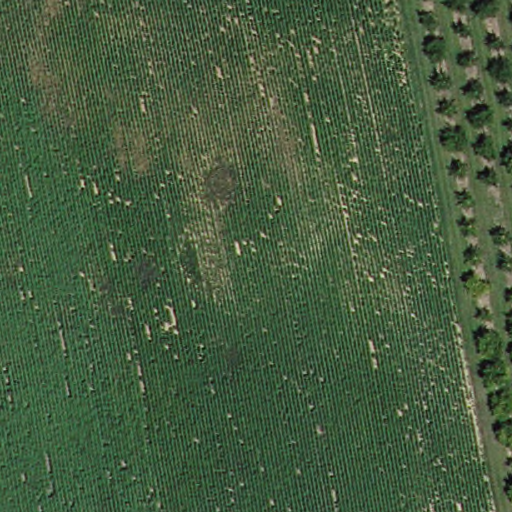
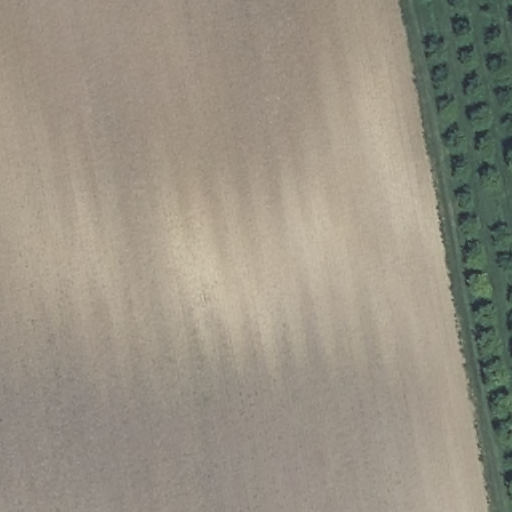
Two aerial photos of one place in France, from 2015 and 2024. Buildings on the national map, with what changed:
[]

